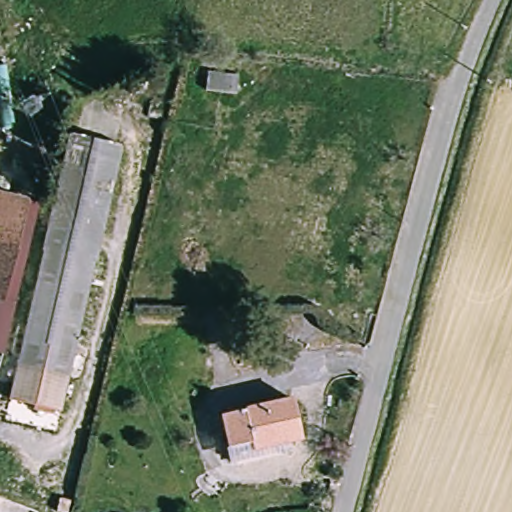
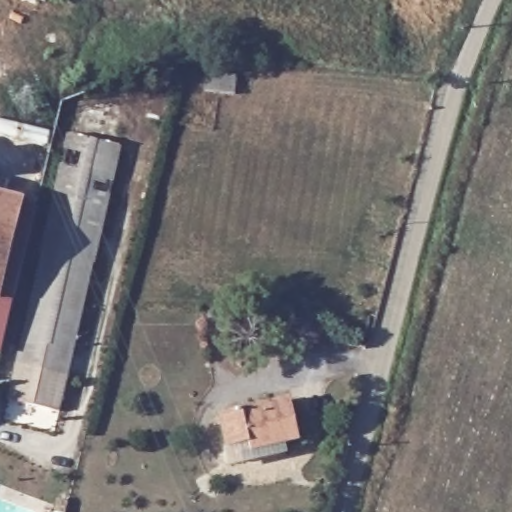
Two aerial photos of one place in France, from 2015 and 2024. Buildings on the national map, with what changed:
unchanged [(244,89),(211,85),(213,67),(246,70),(244,89)]
unchanged [(75,118),(124,130),(58,415),(8,404),(75,118)]
unchanged [(0,289),(0,199),(22,204),(0,289)]
unchanged [(36,207),(0,350),(0,289),(22,204),(36,207)]
unchanged [(231,457),(228,441),(221,408),(291,393),(301,435),(286,438),(286,445),(231,457)]

